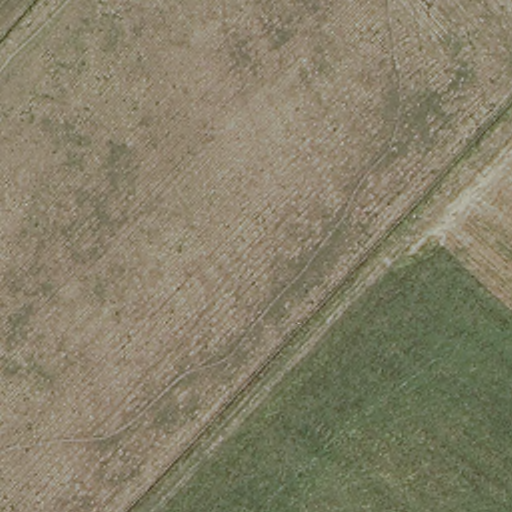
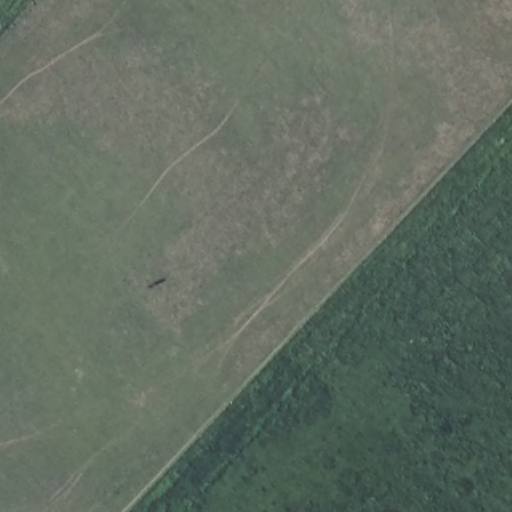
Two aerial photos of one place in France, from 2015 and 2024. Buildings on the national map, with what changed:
[]

